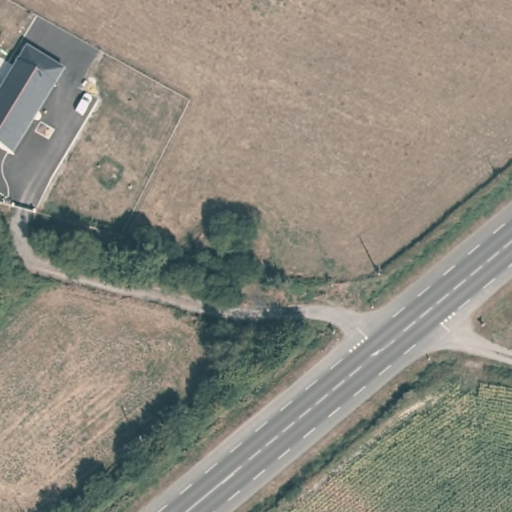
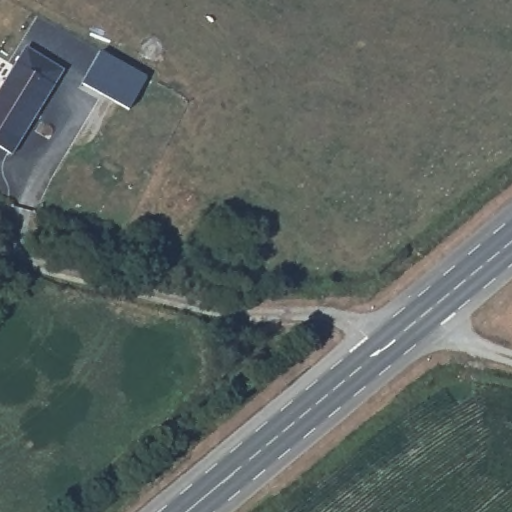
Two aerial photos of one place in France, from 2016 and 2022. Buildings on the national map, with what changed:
unchanged [(0,146),(0,91),(27,47),(40,55),(64,70),(55,85),(12,154),(0,146)]
new [(129,109),(83,84),(102,50),(147,74),(129,109)]

